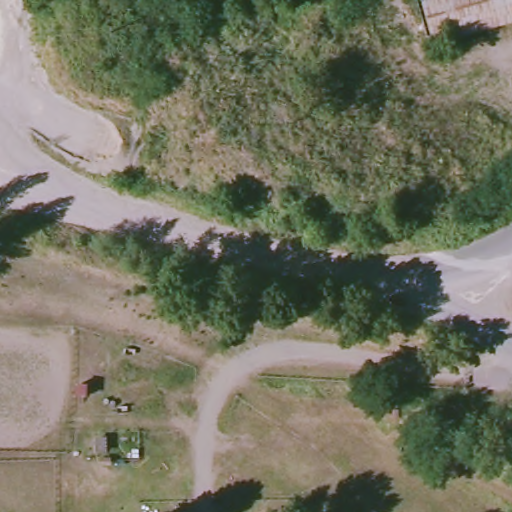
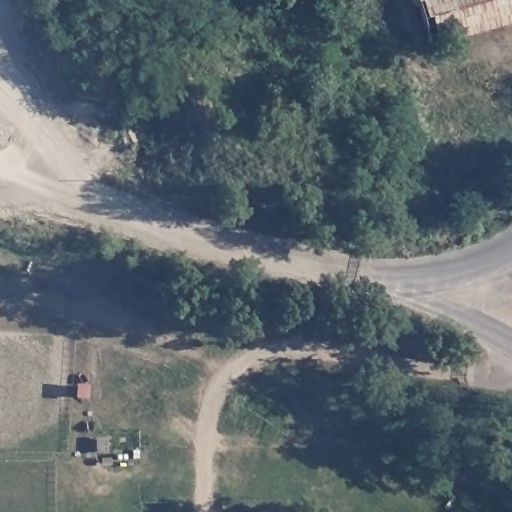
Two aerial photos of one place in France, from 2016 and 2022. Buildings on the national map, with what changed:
unchanged [(439,46),(425,0),(512,0),(512,24),(439,46)]

